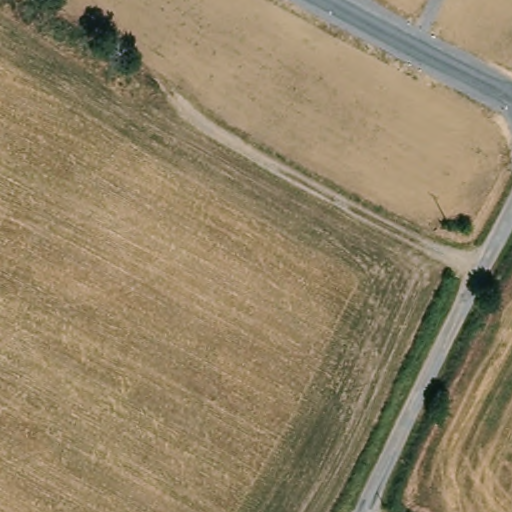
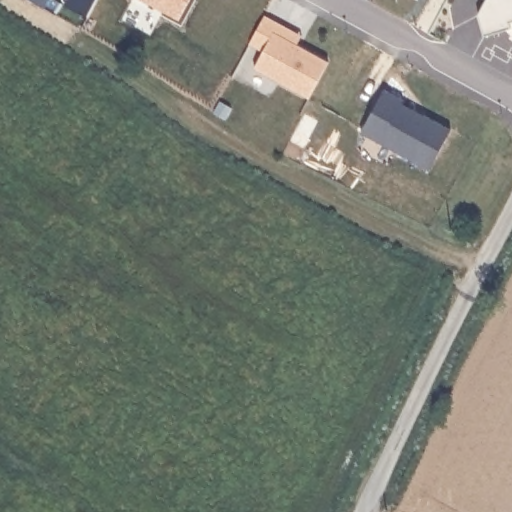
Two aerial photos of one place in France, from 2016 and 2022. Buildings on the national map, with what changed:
new [(65,6),(67,0),(94,0),(86,16),(65,6)]
demolished [(166,0),(151,29),(138,22),(150,0),(166,0)]
new [(190,0),(179,20),(143,0),(190,0)]
new [(508,27),(483,34),(478,14),(485,0),(512,0),(512,21),(507,22),(508,27)]
new [(302,36),(297,45),(328,62),(308,98),(254,69),(262,53),(249,46),(265,15),(302,36)]
new [(451,130),(431,167),(361,132),(383,92),(451,130)]

